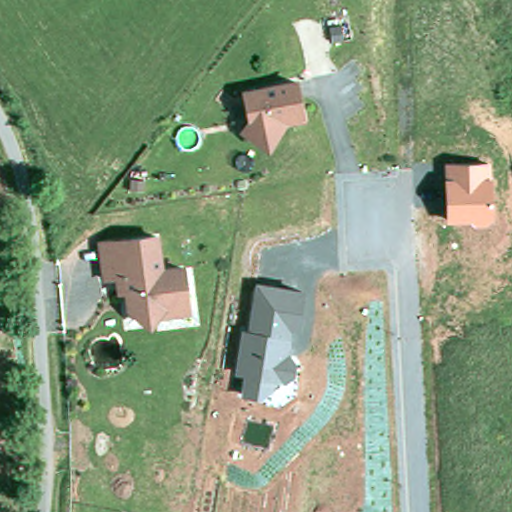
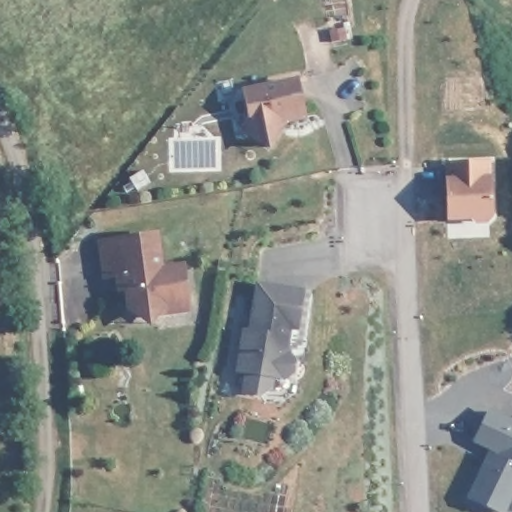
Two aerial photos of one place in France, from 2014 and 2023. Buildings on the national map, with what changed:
unchanged [(297,75),(309,120),(290,125),(270,155),(235,130),(247,115),(240,86),(297,75)]
unchanged [(492,160),(495,224),(474,226),(470,221),(446,220),(444,161),(492,160)]
unchanged [(162,231),(166,265),(186,262),(192,313),(163,317),(151,329),(125,309),(123,293),(115,294),(115,278),(101,279),(97,239),(162,231)]
unchanged [(304,288),(297,331),(291,330),(290,352),(295,361),(291,377),(285,377),(263,398),(239,396),(241,374),(233,373),(240,327),(250,328),(255,281),(304,288)]
new [(467,497),(490,450),(473,442),(488,407),(512,418),(512,499),(506,512),(499,512),(467,497)]

